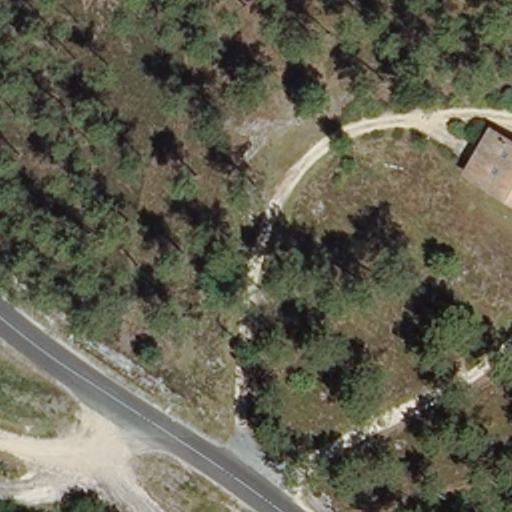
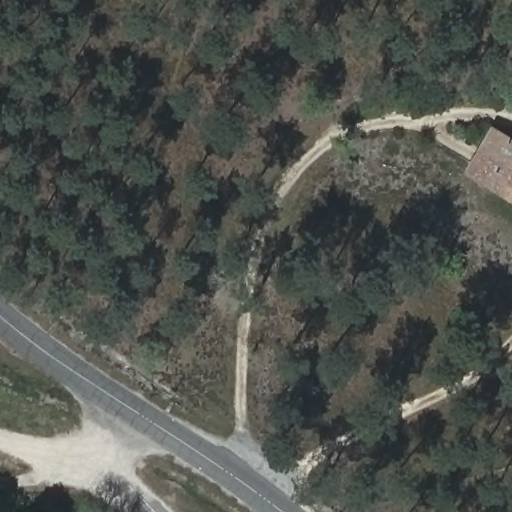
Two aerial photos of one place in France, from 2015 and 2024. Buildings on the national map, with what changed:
unchanged [(512,137),(512,204),(464,177),(492,125),(512,137)]

